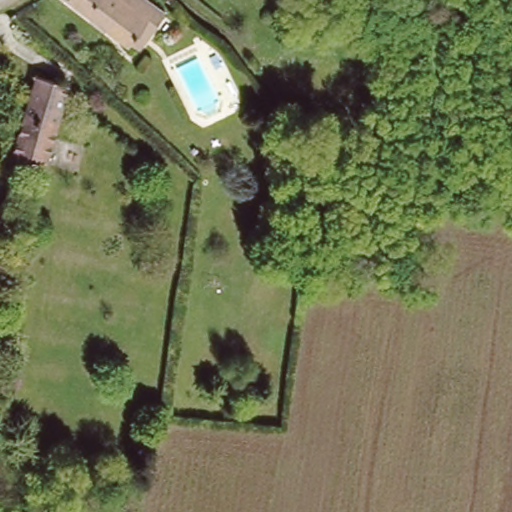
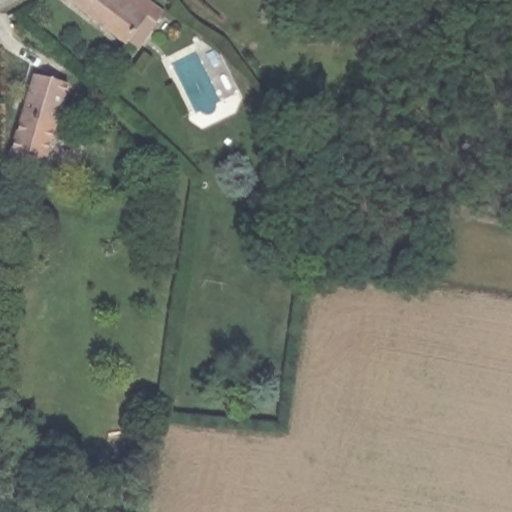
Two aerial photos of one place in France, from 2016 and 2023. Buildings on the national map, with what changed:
unchanged [(132,48),(68,0),(157,0),(172,10),(162,25),(144,50),(135,43),(132,48)]
unchanged [(70,86),(46,165),(13,155),(37,76),(70,86)]

